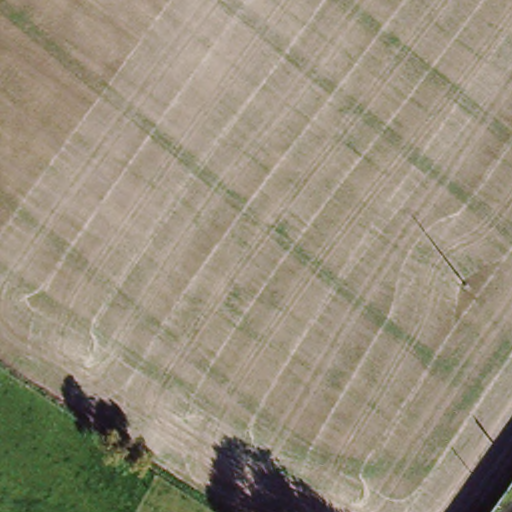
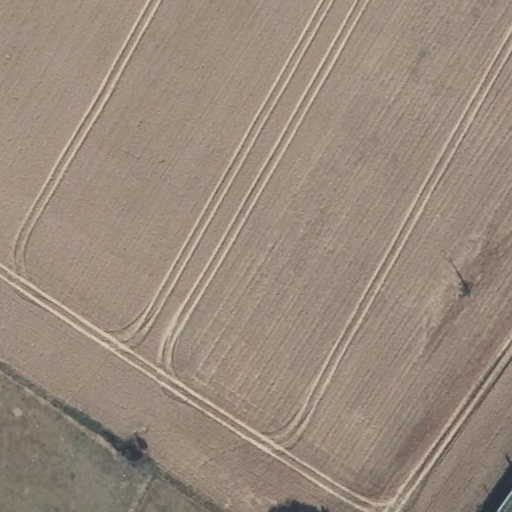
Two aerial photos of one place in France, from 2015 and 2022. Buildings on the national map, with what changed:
[]

